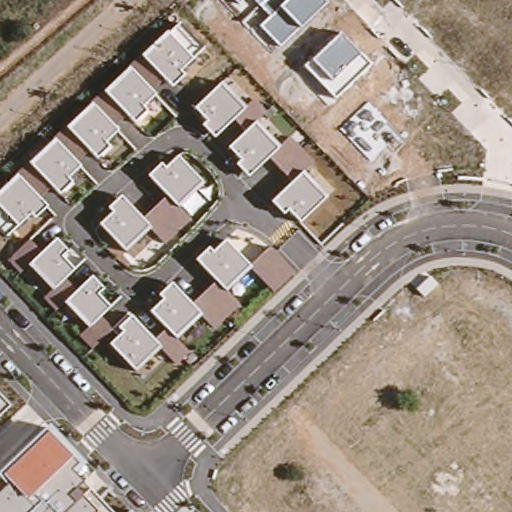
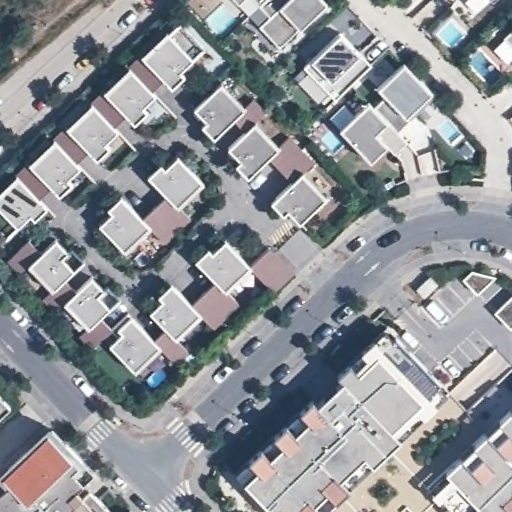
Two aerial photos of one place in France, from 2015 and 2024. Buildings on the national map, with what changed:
unchanged [(243,0),(239,3),(236,0),(243,0)]
unchanged [(301,27),(280,47),(260,27),(271,16),(255,0),(324,0),(326,2),(301,27)]
unchanged [(485,0),(493,0),(489,4),(485,0)]
unchanged [(0,230),(0,193),(18,175),(31,163),(55,140),(68,127),(92,104),(105,91),(130,68),(142,55),(180,21),(205,47),(181,71),(185,75),(173,87),(165,80),(152,92),(155,95),(143,107),(147,111),(135,123),(128,116),(114,127),(118,131),(105,143),(110,149),(98,160),(89,152),(78,163),(80,166),(68,179),(72,184),(60,195),(53,188),(42,199),(48,206),(35,218),(30,214),(6,236),(0,230)]
unchanged [(510,30),(512,28),(512,48),(503,38),(510,30)]
unchanged [(312,60),(340,34),(359,53),(371,64),(334,99),(304,66),(312,60)]
new [(430,94),(405,118),(393,131),(404,144),(392,156),(383,148),(368,164),(339,130),(365,103),(373,110),(384,99),(375,90),(402,65),(430,94)]
unchanged [(271,201),(292,182),(269,156),(249,175),(238,163),(241,159),(230,147),(246,132),(233,119),(213,137),(204,126),(208,122),(196,107),(222,83),(244,107),(255,98),(266,112),(256,122),(279,147),(291,137),(316,161),(304,172),(326,196),(300,222),(288,209),(282,214),(271,201)]
unchanged [(100,225),(114,212),(109,207),(122,195),(143,218),(168,196),(149,175),(162,163),(165,167),(178,156),(202,182),(179,205),(191,219),(166,244),(150,227),(125,251),(100,225)]
unchanged [(30,239),(43,252),(56,239),(67,249),(70,246),(84,260),(73,269),(64,276),(78,290),(92,276),(105,287),(107,285),(120,297),(110,307),(102,315),(115,329),(131,315),(154,339),(166,328),(151,311),(163,300),(157,296),(171,282),(191,303),(215,282),(196,260),(209,247),(213,251),(225,240),(249,265),(271,246),(295,270),(274,293),(250,268),(226,289),(240,304),(215,330),(201,315),(177,338),(189,353),(176,364),(160,348),(135,372),(109,344),(117,336),(114,333),(95,352),(79,336),(88,328),(66,305),(56,312),(43,298),(50,291),(29,268),(20,274),(9,260),(30,239)]
new [(468,283),(476,274),(500,281),(482,299),(468,283)]
new [(421,294),(434,281),(442,289),(428,302),(421,294)]
new [(499,318),(512,305),(512,331),(499,318)]
new [(246,482),(236,474),(249,458),(253,461),(263,450),(261,448),(274,435),(277,434),(290,424),(288,422),(301,410),(305,412),(314,402),(318,406),(345,380),(338,374),(334,372),(348,361),(362,349),(364,351),(374,341),(386,329),(392,338),(397,335),(440,382),(438,384),(446,393),(432,402),(437,408),(426,417),(419,409),(392,430),(400,438),(373,465),(365,456),(341,480),(350,489),(337,502),(329,493),(315,504),(322,512),(274,512),(246,482)]
unchanged [(9,405),(0,414),(0,396),(9,405)]
new [(440,500),(434,494),(452,476),(446,472),(512,411),(512,512),(451,512),(440,500)]
unchanged [(48,427),(84,465),(92,473),(77,489),(83,496),(90,490),(110,512),(0,512),(0,472),(48,427)]
unchanged [(131,510),(132,512),(129,512),(131,510)]

